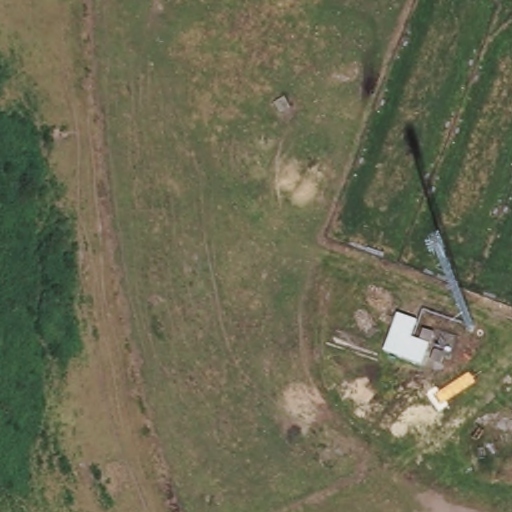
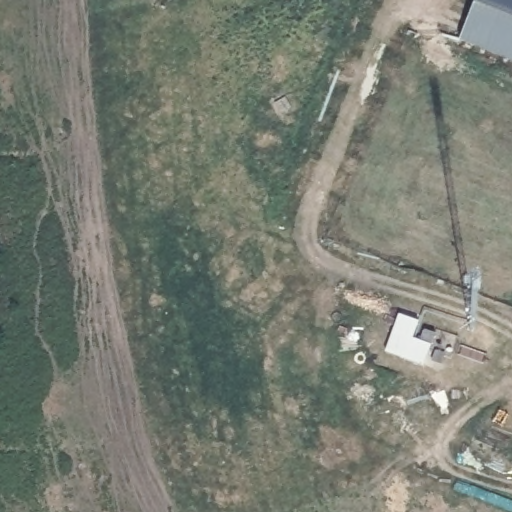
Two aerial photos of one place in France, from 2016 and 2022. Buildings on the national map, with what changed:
new [(462,36),(476,0),(512,0),(512,58),(462,36)]
unchanged [(421,322),(416,339),(435,345),(425,368),(385,354),(398,316),(421,322)]

